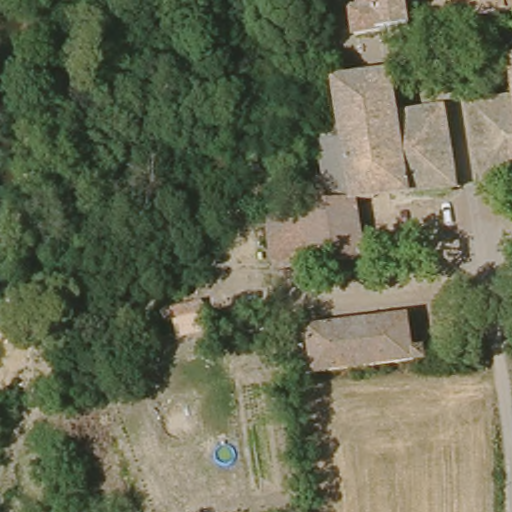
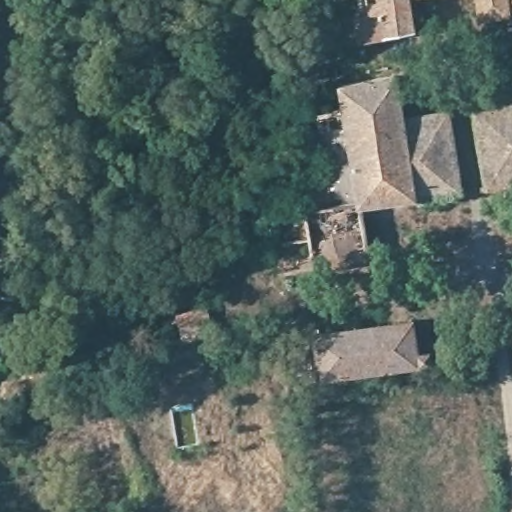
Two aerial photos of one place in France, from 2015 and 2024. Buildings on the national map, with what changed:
unchanged [(412,32),(357,41),(353,16),(361,14),(359,0),(407,0),(412,32)]
unchanged [(512,20),(476,25),(472,0),(512,0),(512,20)]
unchanged [(291,206),(287,191),(325,183),(349,178),(343,133),(337,92),(394,82),(401,120),(443,113),(456,189),(359,205),(366,257),(306,265),(300,213),(298,204),(291,206)]
unchanged [(491,107),(512,104),(512,186),(505,187),(491,107)]
unchanged [(343,133),(349,178),(325,183),(320,140),(343,133)]
unchanged [(268,178),(287,158),(296,167),(246,228),(235,219),(249,199),(268,178)]
unchanged [(273,219),(300,213),(306,265),(278,269),(273,219)]
unchanged [(428,346),(429,366),(301,383),(299,362),(312,360),(309,336),(410,322),(411,347),(428,346)]

